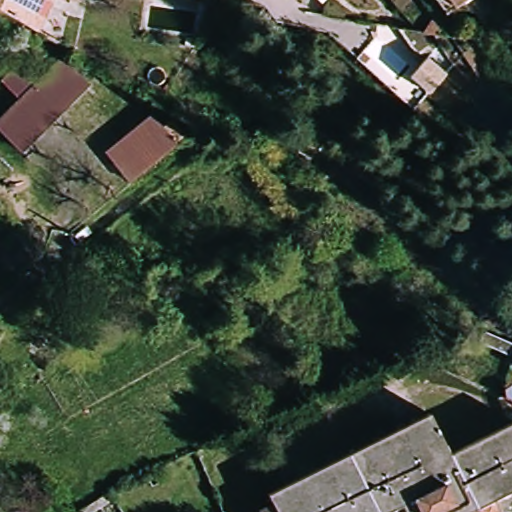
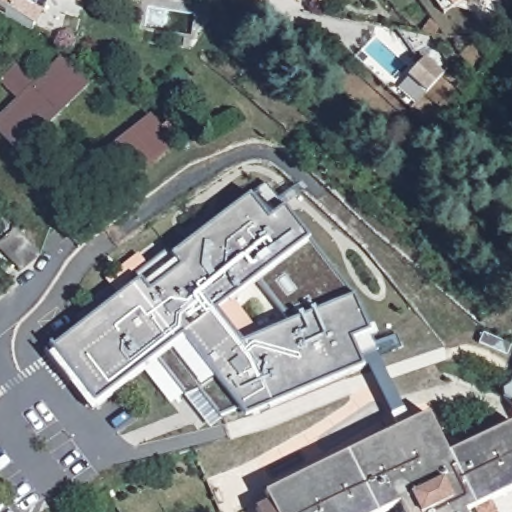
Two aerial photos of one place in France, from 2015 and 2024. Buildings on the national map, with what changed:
unchanged [(85,8),(50,4),(35,32),(0,10),(0,0),(86,0),(85,8)]
unchanged [(285,1),(284,0),(286,0),(285,1)]
unchanged [(325,1),(323,0),(327,0),(325,1)]
unchanged [(456,7),(450,0),(464,0),(456,7)]
unchanged [(428,53),(447,69),(430,88),(412,72),(428,53)]
unchanged [(84,84),(17,152),(0,135),(0,118),(59,60),(84,84)]
unchanged [(177,149),(130,187),(108,160),(156,124),(177,149)]
new [(358,359),(361,370),(241,418),(238,411),(220,422),(209,430),(183,396),(167,406),(142,372),(91,413),(44,354),(139,281),(134,276),(166,251),(172,256),(251,196),(265,185),(284,206),(353,297),(368,332),(375,350),(358,359)]
unchanged [(24,271),(1,244),(18,229),(42,257),(24,271)]
unchanged [(386,512),(261,512),(252,494),(266,488),(431,414),(449,453),(512,427),(512,492),(491,502),(495,511),(496,512),(473,512),(473,510),(469,512),(406,512),(403,504),(386,512)]

